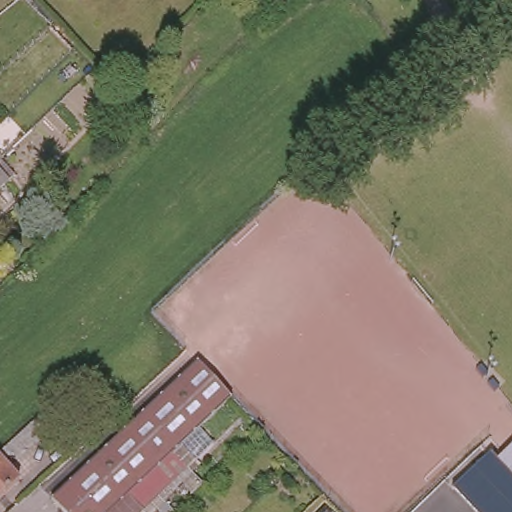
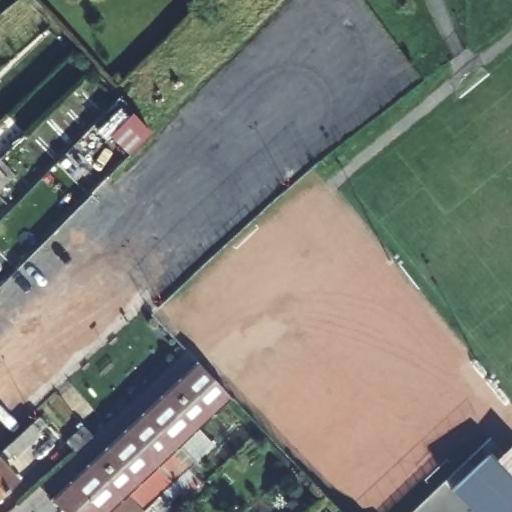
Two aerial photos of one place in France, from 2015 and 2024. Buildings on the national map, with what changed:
unchanged [(195,362),(227,396),(205,416),(107,510),(72,474),(195,362)]
unchanged [(72,474),(107,510),(205,416),(223,435),(141,512),(60,512),(47,498),(72,474)]
unchanged [(45,429),(39,435),(52,449),(48,453),(35,440),(17,458),(8,449),(14,444),(38,421),(45,429)]
unchanged [(87,436),(70,451),(61,442),(78,426),(87,436)]
unchanged [(11,459),(2,467),(20,485),(0,504),(0,456),(5,452),(11,459)]
unchanged [(486,464),(512,491),(512,512),(468,512),(452,496),(486,464)]

